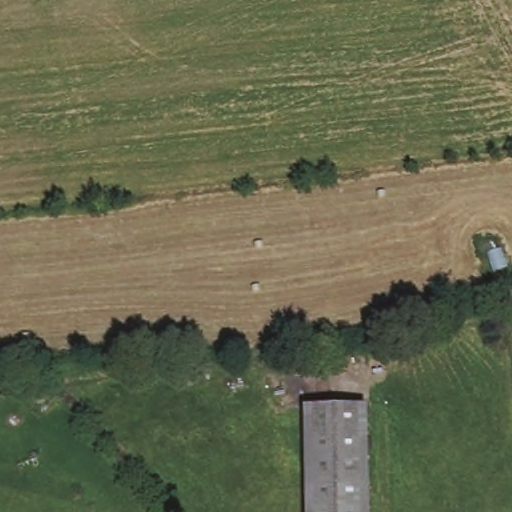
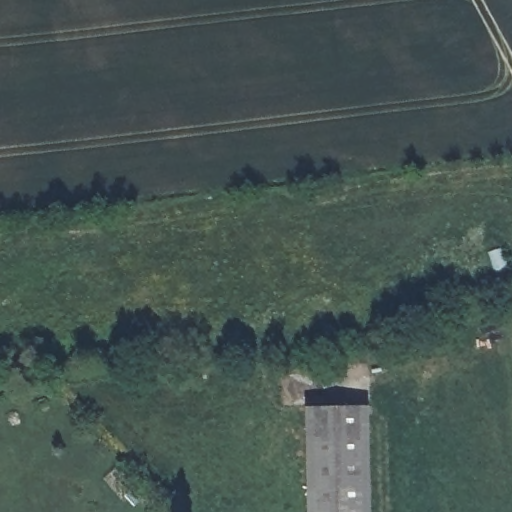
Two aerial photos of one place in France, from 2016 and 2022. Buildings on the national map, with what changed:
unchanged [(367,407),(370,512),(308,512),(307,408),(367,407)]

